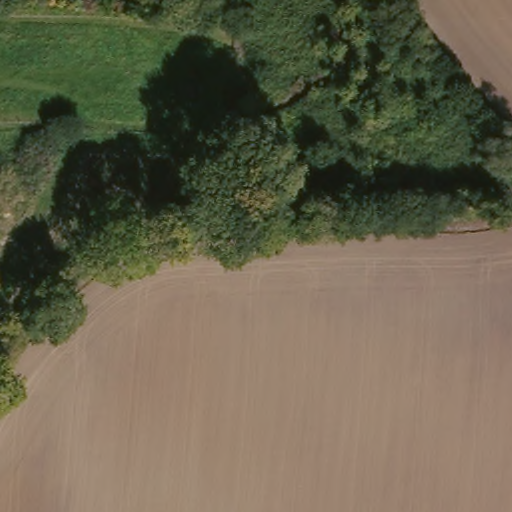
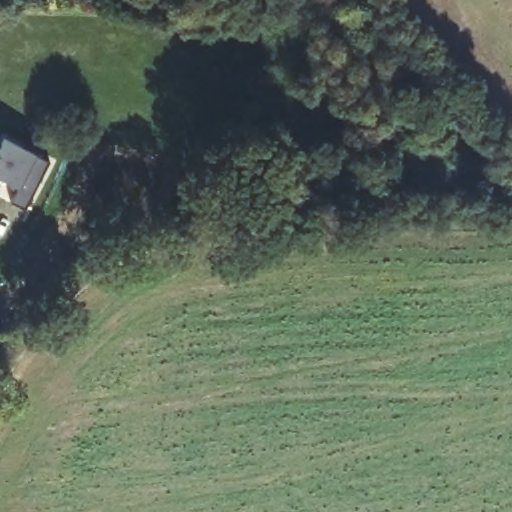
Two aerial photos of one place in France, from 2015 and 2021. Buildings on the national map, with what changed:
new [(37,156),(50,163),(26,212),(11,204),(19,189),(0,180),(0,148),(5,140),(36,155),(37,156)]

